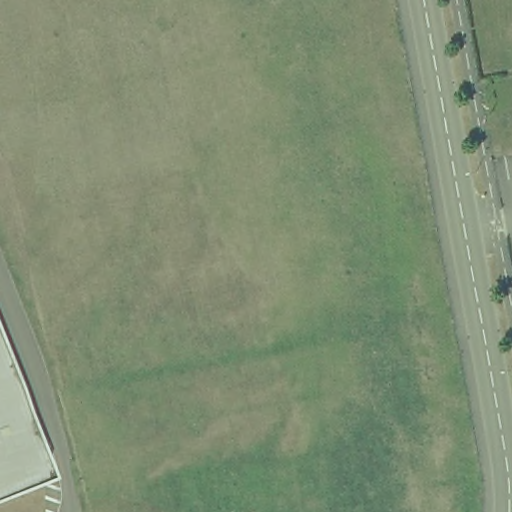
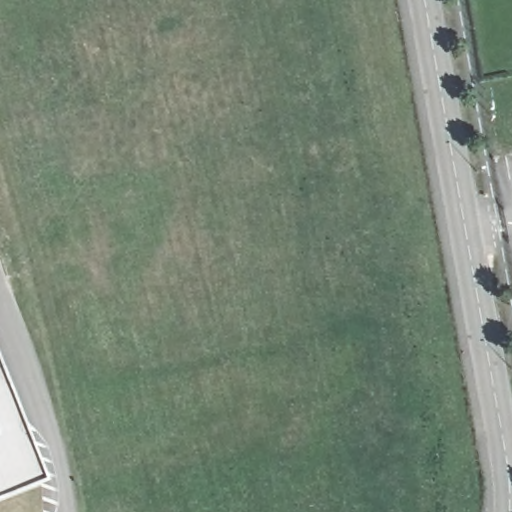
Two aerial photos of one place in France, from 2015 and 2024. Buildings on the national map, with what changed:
unchanged [(43,480),(13,492),(0,497),(0,375),(43,480)]

